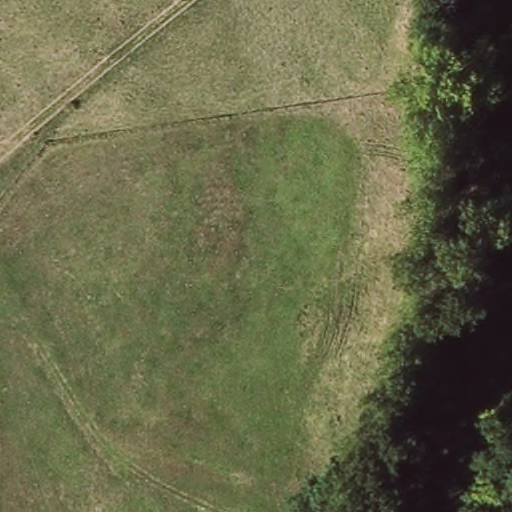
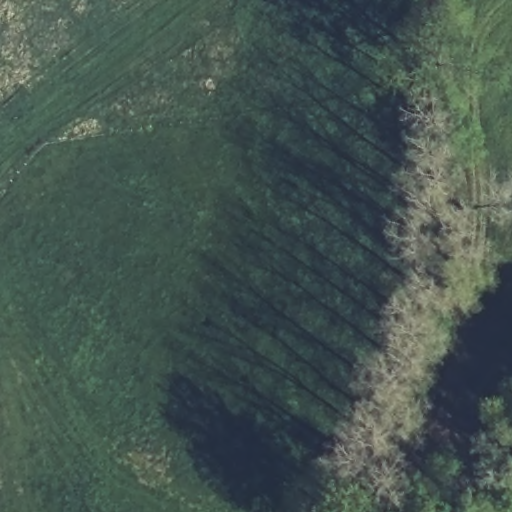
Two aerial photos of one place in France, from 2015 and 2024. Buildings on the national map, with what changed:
[]

